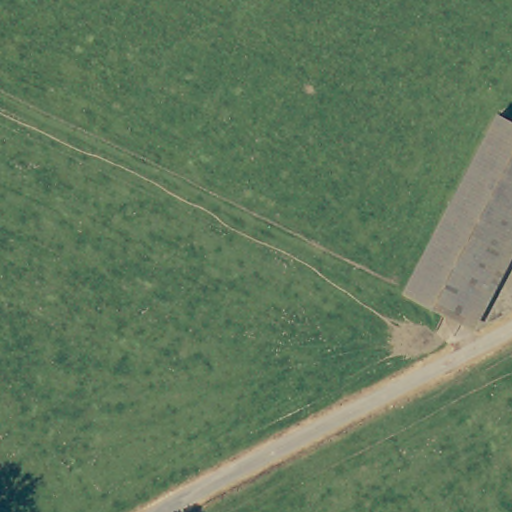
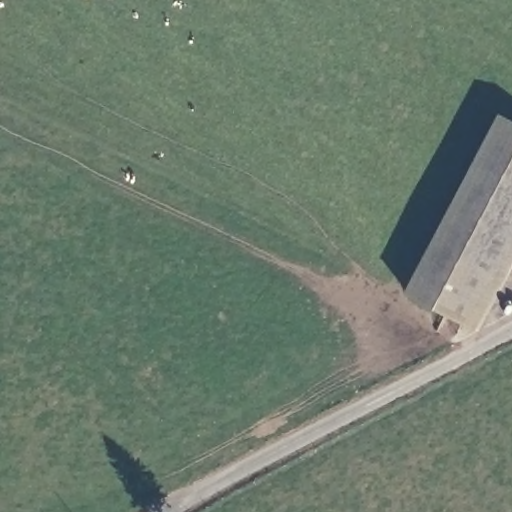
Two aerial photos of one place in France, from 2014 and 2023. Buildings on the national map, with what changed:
unchanged [(405,287),(499,110),(512,116),(512,226),(463,318),(405,287)]

